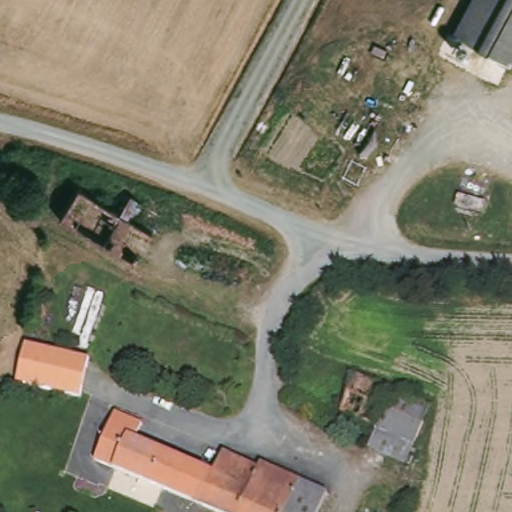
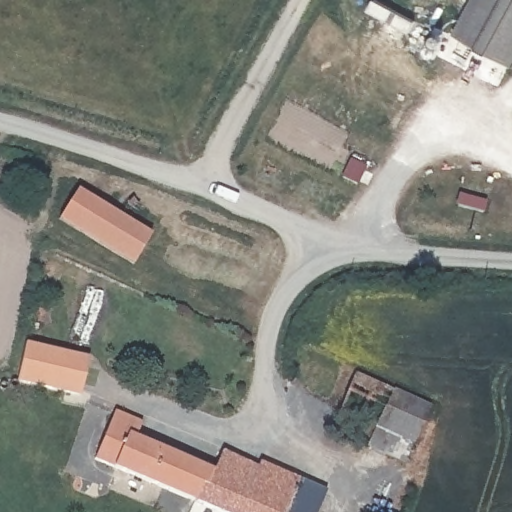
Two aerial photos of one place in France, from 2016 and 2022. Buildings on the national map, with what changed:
unchanged [(512,0),(512,57),(507,65),(454,35),(473,0),(512,0)]
new [(59,219),(78,188),(152,234),(133,265),(59,219)]
unchanged [(93,357),(84,397),(20,382),(29,343),(93,357)]
unchanged [(373,446),(381,426),(345,410),(360,372),(435,406),(410,462),(373,446)]
unchanged [(100,459),(120,411),(147,423),(141,437),(215,469),(200,502),(100,459)]
unchanged [(265,462),(332,491),(323,512),(223,512),(200,502),(215,469),(219,470),(228,451),(247,460),(262,467),(265,462)]

